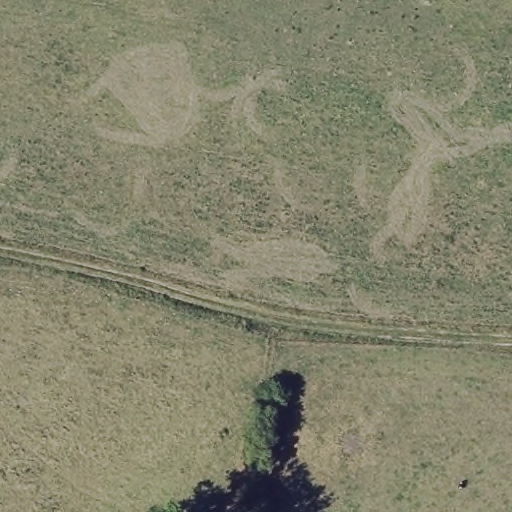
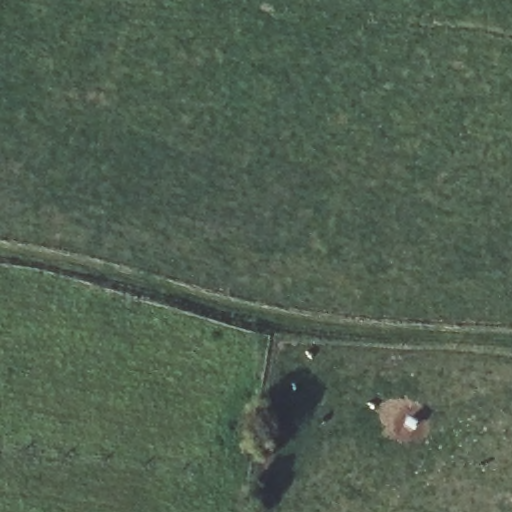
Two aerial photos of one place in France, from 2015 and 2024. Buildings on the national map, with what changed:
[]

